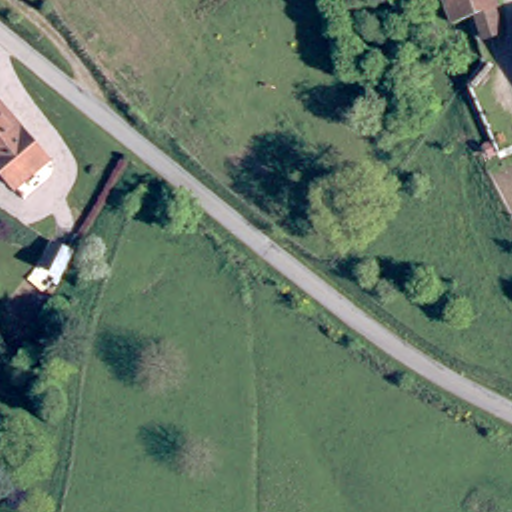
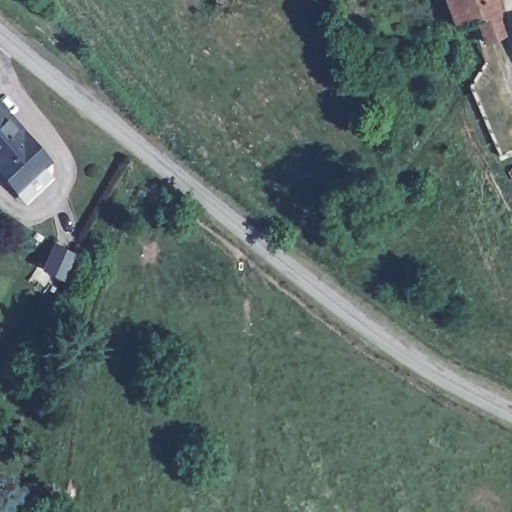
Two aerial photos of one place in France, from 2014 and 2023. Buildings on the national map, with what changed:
unchanged [(481,21),(463,27),(454,0),(499,0),(503,11),(512,34),(488,42),(481,21)]
unchanged [(53,154),(14,190),(0,173),(0,96),(2,95),(53,154)]

